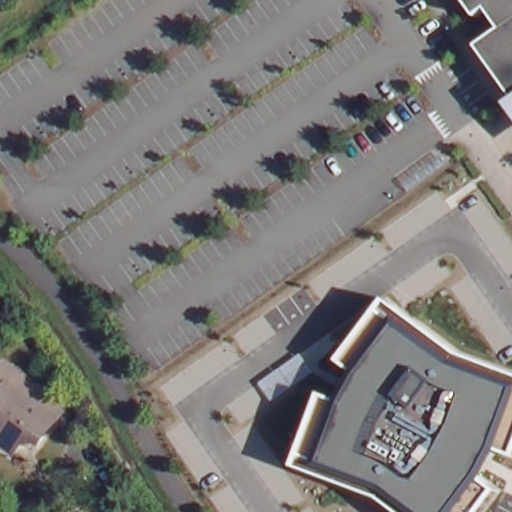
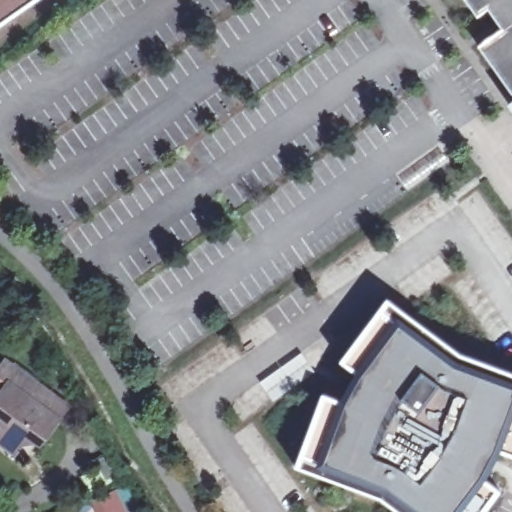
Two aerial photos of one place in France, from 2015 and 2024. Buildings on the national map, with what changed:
new [(24,9),(0,25),(0,0),(37,0),(24,9)]
unchanged [(512,100),(474,46),(497,29),(484,10),(473,17),(461,0),(512,0),(512,100)]
unchanged [(399,512),(382,498),(295,466),(321,394),(343,403),(359,375),(340,362),(386,300),(458,354),(512,374),(512,457),(499,452),(483,481),(499,492),(484,512),(399,512)]
unchanged [(45,440),(30,441),(27,445),(2,426),(15,409),(6,402),(13,392),(1,383),(15,363),(51,389),(75,406),(66,419),(50,442),(45,440)]

